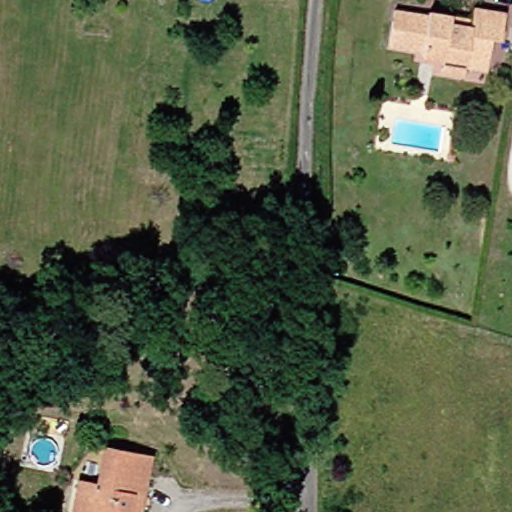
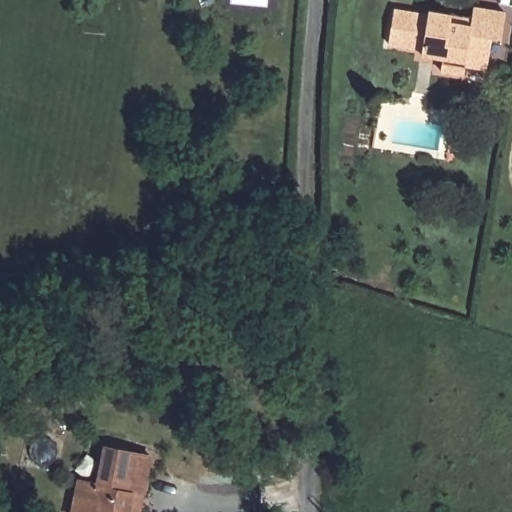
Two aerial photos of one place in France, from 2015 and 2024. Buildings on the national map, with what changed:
unchanged [(510,11),(507,39),(496,38),(493,67),(471,66),(470,74),(448,72),(449,57),(431,55),(432,49),(395,44),(400,10),(458,14),(478,16),(480,8),(510,11)]
unchanged [(104,488),(103,452),(151,451),(152,489),(152,512),(88,512),(87,488),(104,488)]

